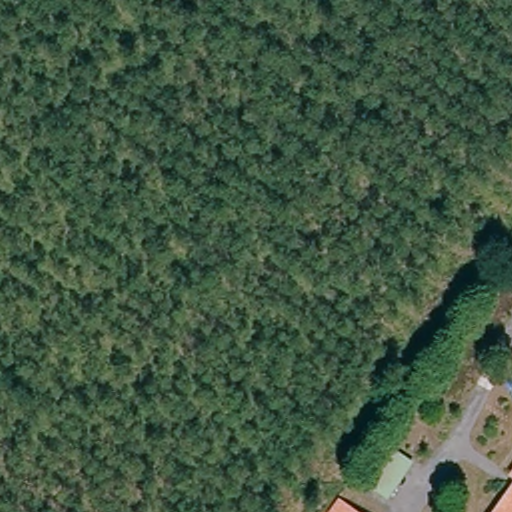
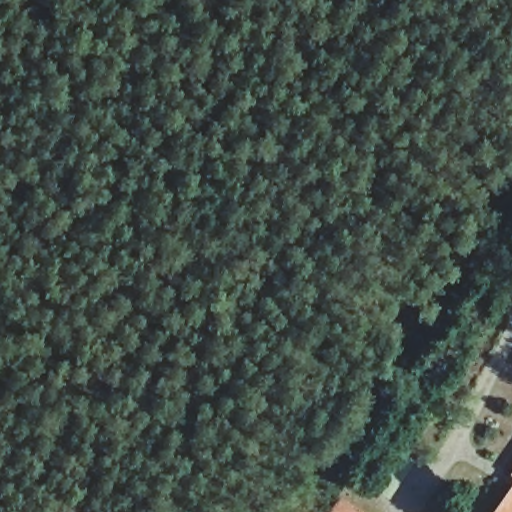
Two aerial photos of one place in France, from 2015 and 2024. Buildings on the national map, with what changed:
unchanged [(512,464),(512,475),(507,472),(512,464)]
unchanged [(512,497),(512,512),(500,512),(512,497)]
unchanged [(343,511),(344,512),(342,512),(343,511)]

